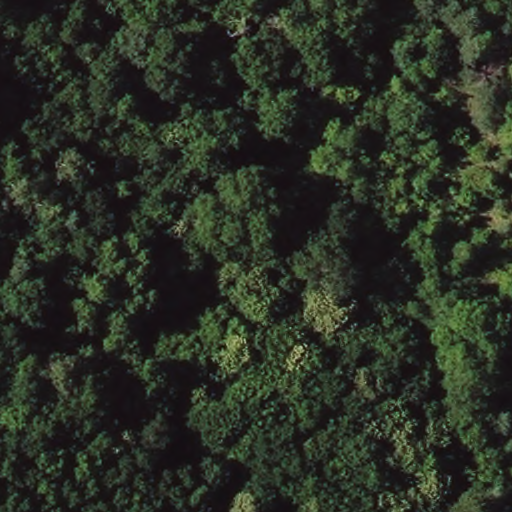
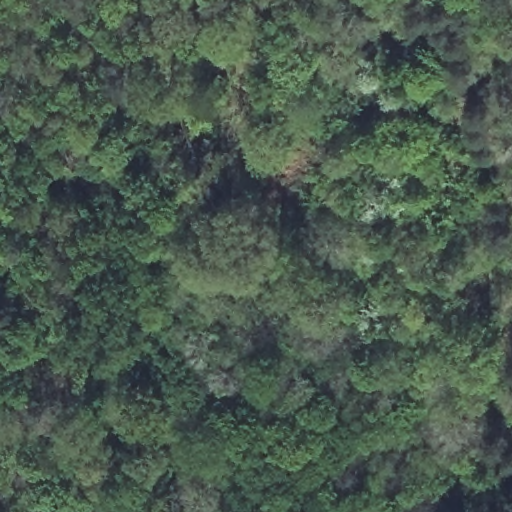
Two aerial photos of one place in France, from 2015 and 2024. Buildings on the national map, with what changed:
[]

